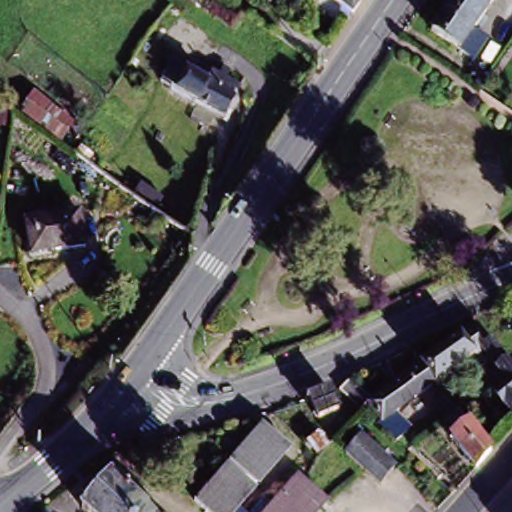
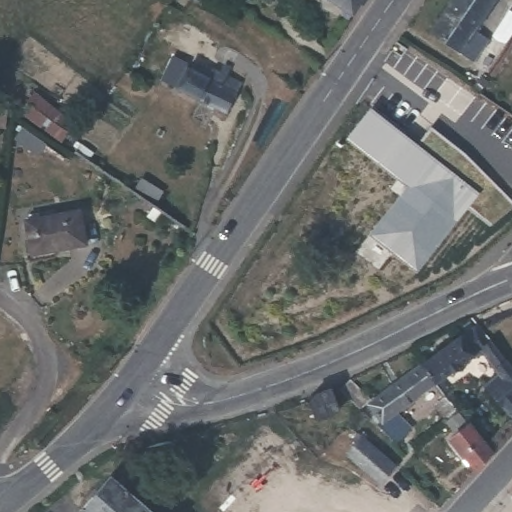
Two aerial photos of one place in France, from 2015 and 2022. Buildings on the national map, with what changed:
unchanged [(260,5),(250,0),(262,0),(260,5)]
unchanged [(319,0),(361,0),(348,20),(319,0)]
unchanged [(468,29),(483,39),(469,60),(427,31),(448,0),(488,0),(468,29)]
unchanged [(173,55),(189,62),(186,68),(207,79),(212,69),(219,73),(223,65),(228,68),(225,75),(240,83),(226,111),(198,97),(198,98),(162,80),(173,55)]
unchanged [(71,124),(63,136),(25,108),(32,96),(71,124)]
new [(431,125),(464,151),(512,199),(512,209),(493,223),(472,204),(417,269),(370,233),(407,186),(346,135),(370,106),(416,141),(431,125)]
unchanged [(80,243),(27,253),(21,220),(75,210),(80,243)]
unchanged [(471,352),(429,379),(436,388),(431,393),(424,384),(423,383),(412,369),(410,365),(452,335),(448,330),(460,320),(465,326),(466,325),(480,342),(481,341),(498,361),(512,378),(512,391),(507,395),(512,402),(512,413),(504,420),(484,395),(480,390),(480,383),(490,375),(471,352)]
unchanged [(385,412),(400,428),(385,442),(385,441),(367,425),(370,422),(357,404),(410,365),(412,369),(423,383),(424,384),(385,412)]
unchanged [(360,398),(350,408),(330,390),(340,380),(360,398)]
unchanged [(328,410),(307,417),(300,397),(320,389),(328,410)]
unchanged [(463,470),(439,439),(445,434),(436,422),(437,422),(425,405),(435,397),(438,401),(448,413),(480,453),(463,470)]
demolished [(256,489),(230,466),(262,428),(289,451),(256,489)]
unchanged [(326,445),(317,453),(307,442),(317,434),(326,445)]
unchanged [(396,472),(381,489),(347,460),(362,442),(396,472)]
demolished [(202,512),(195,505),(227,468),(254,492),(236,512),(202,512)]
unchanged [(111,476),(128,491),(152,512),(84,512),(82,510),(111,476)]
demolished [(266,512),(298,476),(326,501),(317,512),(266,512)]

